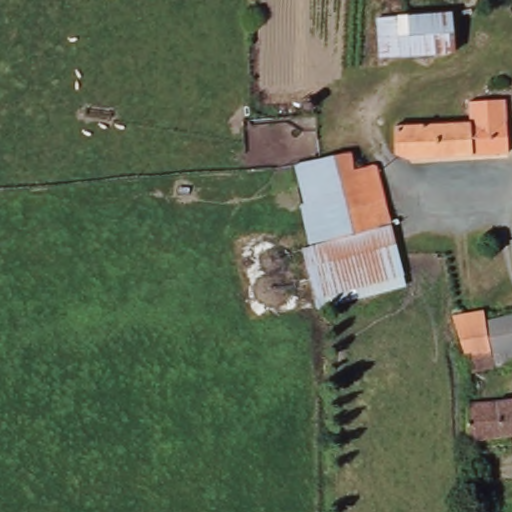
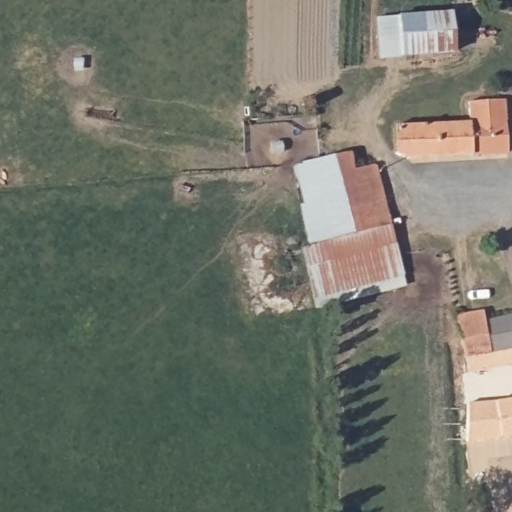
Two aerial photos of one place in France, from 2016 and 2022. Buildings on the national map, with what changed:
unchanged [(373,19),(401,18),(449,16),(450,55),(397,57),(377,58),(373,19)]
unchanged [(505,154),(397,157),(398,128),(427,125),(504,118),(505,154)]
unchanged [(343,166),(346,173),(357,172),(361,180),(369,179),(386,241),(371,246),(353,252),(338,257),(317,263),(300,205),(292,182),(343,166)]
unchanged [(386,241),(399,289),(397,289),(384,293),(343,305),(320,311),(307,266),(317,263),(338,257),(353,252),(371,246),(386,241)]
unchanged [(487,316),(493,342),(460,349),(452,315),(463,312),(484,308),(487,316)]
unchanged [(512,312),(512,347),(494,350),(493,342),(487,316),(512,312)]
unchanged [(460,349),(493,342),(494,350),(512,347),(512,363),(466,370),(460,349)]
unchanged [(473,423),(474,406),(512,399),(512,434),(473,438),(473,423)]

